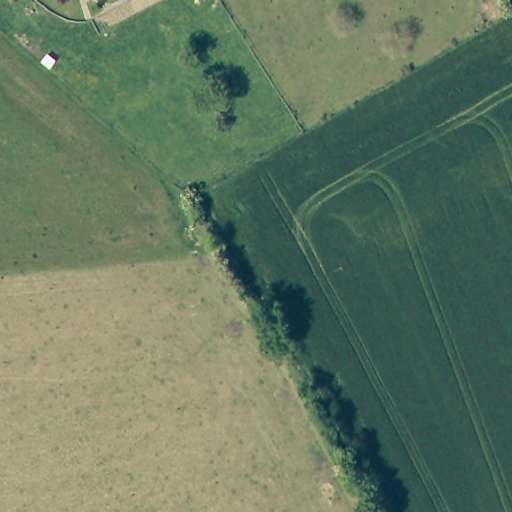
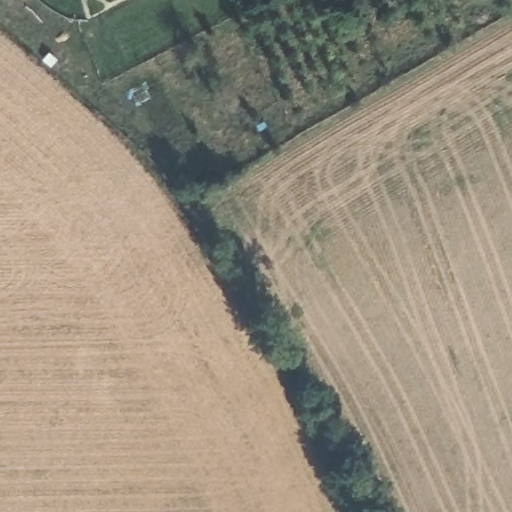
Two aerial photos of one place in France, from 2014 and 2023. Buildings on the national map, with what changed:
[]

